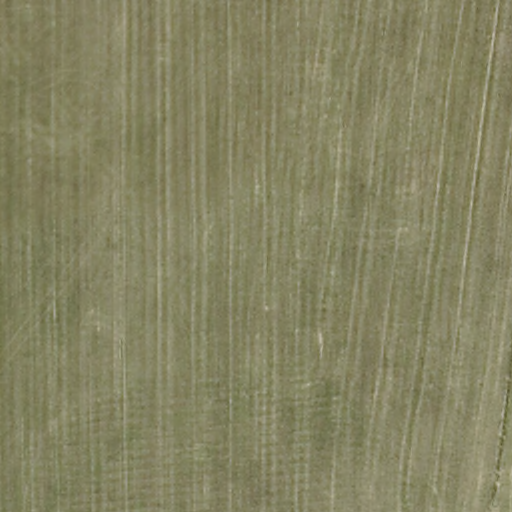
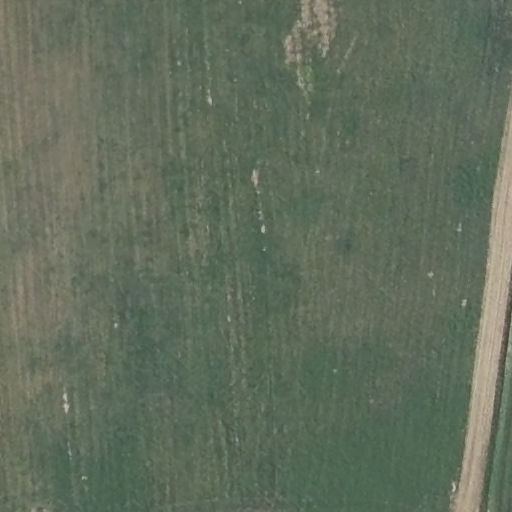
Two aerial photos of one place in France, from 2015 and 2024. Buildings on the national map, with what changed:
[]

